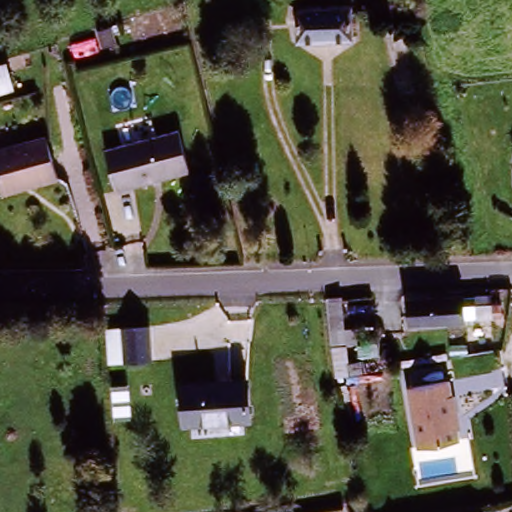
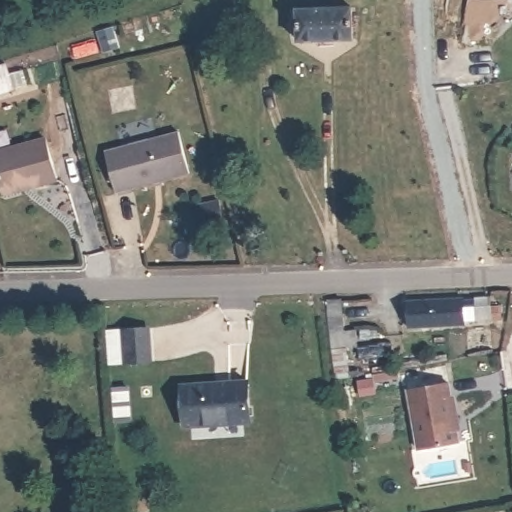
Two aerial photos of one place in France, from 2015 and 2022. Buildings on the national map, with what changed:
unchanged [(354,14),(354,45),(298,45),(298,13),(354,14)]
unchanged [(20,92),(0,98),(0,68),(10,65),(20,92)]
unchanged [(105,155),(178,136),(189,177),(116,196),(105,155)]
unchanged [(0,186),(0,150),(45,138),(57,180),(3,195),(0,186)]
unchanged [(409,328),(407,303),(467,299),(467,303),(493,301),(494,320),(469,322),(469,323),(409,328)]
unchanged [(336,401),(328,302),(344,300),(346,331),(361,332),(361,349),(350,350),(351,397),(336,401)]
unchanged [(106,323),(150,321),(151,360),(108,362),(106,323)]
unchanged [(405,386),(449,376),(464,433),(419,444),(405,386)]
unchanged [(248,423),(183,427),(180,387),(244,383),(248,423)]

